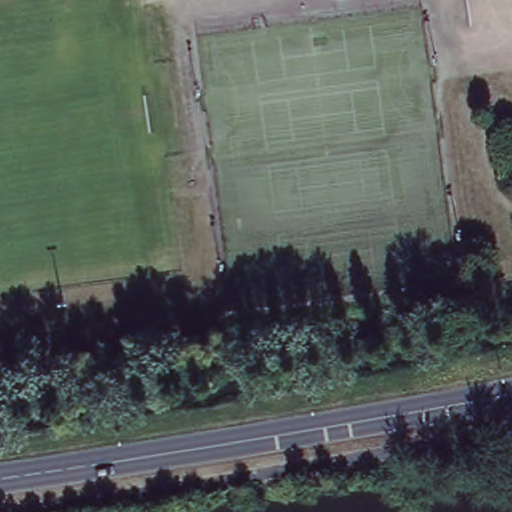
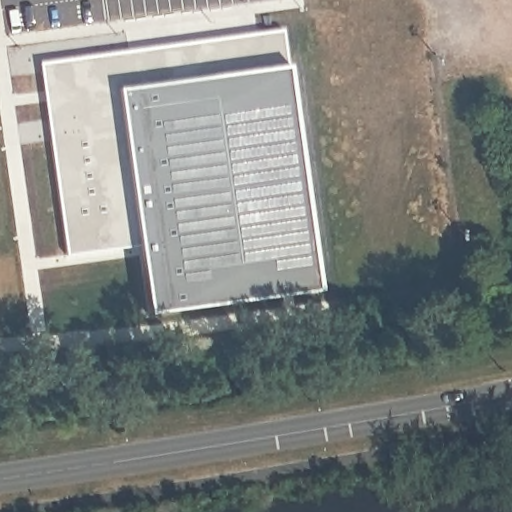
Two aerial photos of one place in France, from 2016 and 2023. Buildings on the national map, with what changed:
new [(23,56),(273,23),(310,301),(138,323),(133,271),(53,280),(23,56)]

